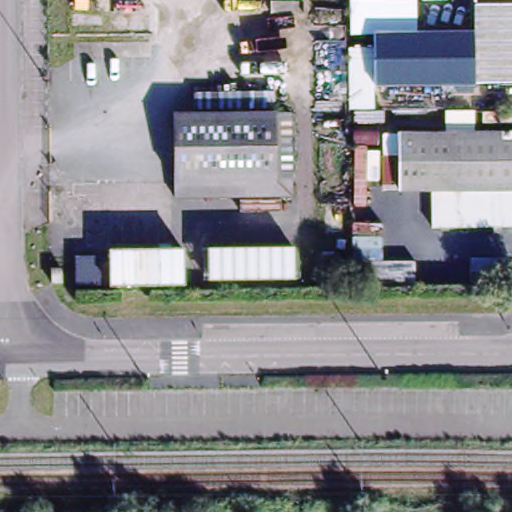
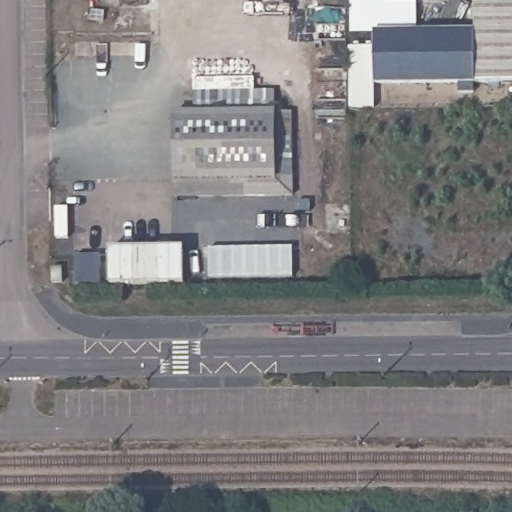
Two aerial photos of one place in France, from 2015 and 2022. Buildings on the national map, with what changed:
demolished [(74,28),(74,0),(138,0),(138,28),(74,28)]
unchanged [(481,0),(512,0),(512,105),(483,105),(482,84),(379,82),(380,30),(354,30),(354,1),(353,0),(419,0),(419,29),(481,28),(481,0)]
unchanged [(272,89),(273,106),(193,107),(195,89),(272,89)]
unchanged [(291,193),(177,196),(175,113),(291,111),(291,193)]
demolished [(448,135),(447,111),(479,111),(479,135),(512,135),(512,225),(437,227),(436,191),(403,192),(402,135),(448,135)]
unchanged [(178,248),(179,285),(114,285),(116,247),(178,248)]
unchanged [(68,289),(68,259),(91,259),(91,289),(68,289)]
unchanged [(53,273),(53,288),(41,288),(41,273),(53,273)]

